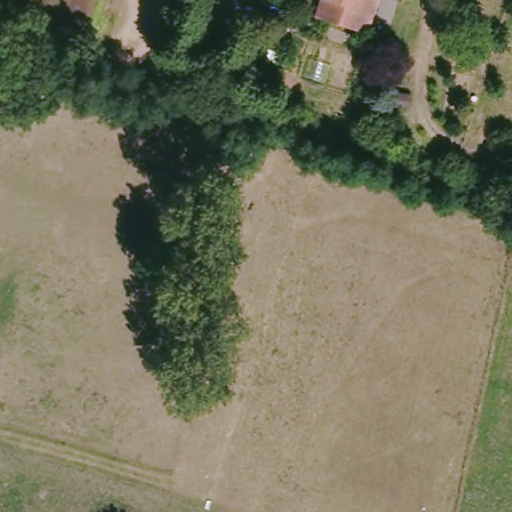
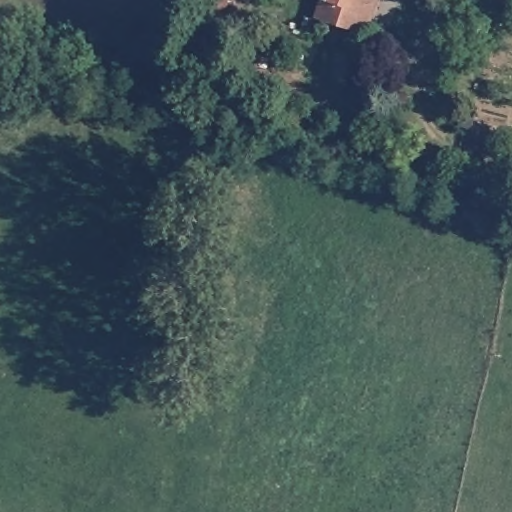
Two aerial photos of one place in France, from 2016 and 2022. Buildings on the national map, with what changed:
unchanged [(360,30),(317,15),(321,0),(381,0),(369,32),(360,30)]

